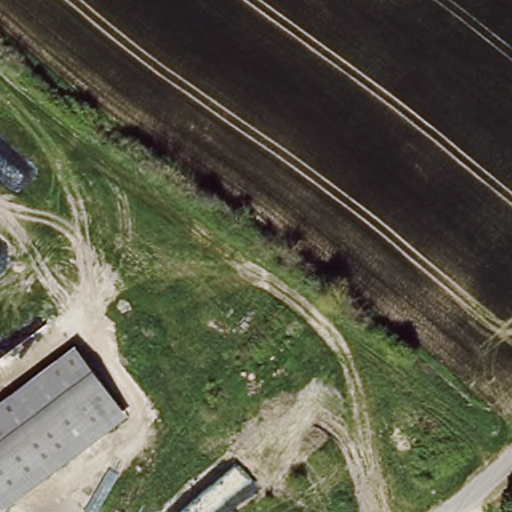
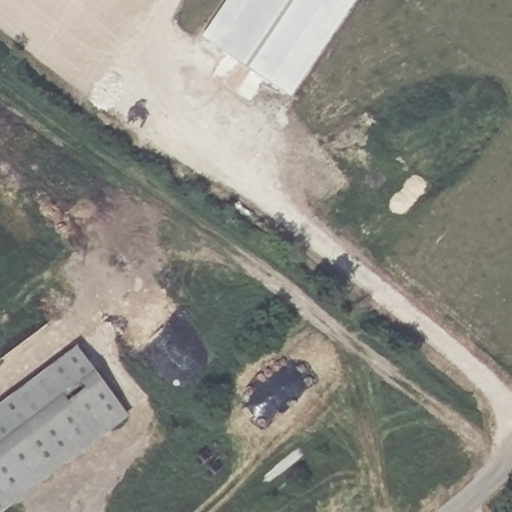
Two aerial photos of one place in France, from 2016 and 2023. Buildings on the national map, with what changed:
new [(226,0),(357,0),(291,97),(201,37),(226,0)]
unchanged [(130,414),(0,509),(0,402),(80,342),(130,414)]

